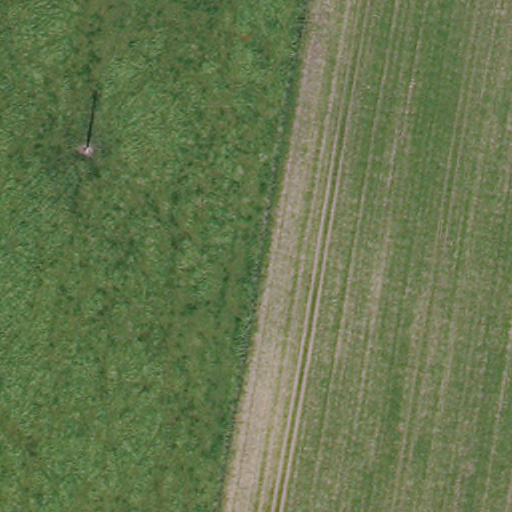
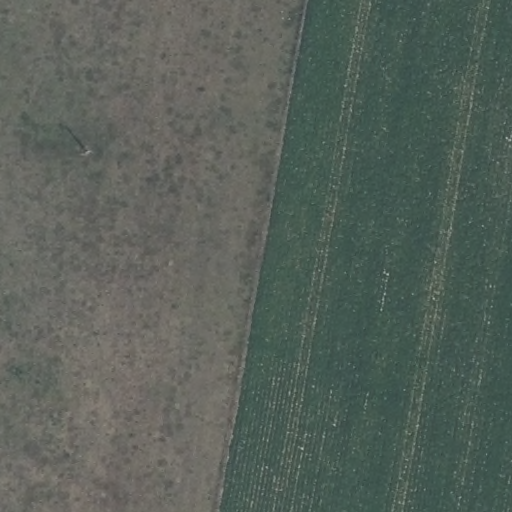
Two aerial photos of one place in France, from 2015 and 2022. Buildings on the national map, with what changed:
[]

